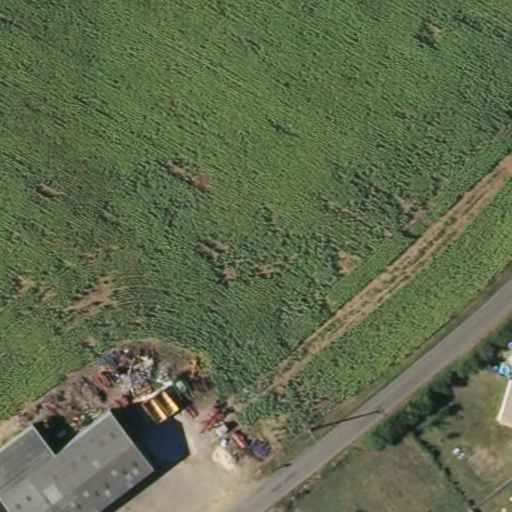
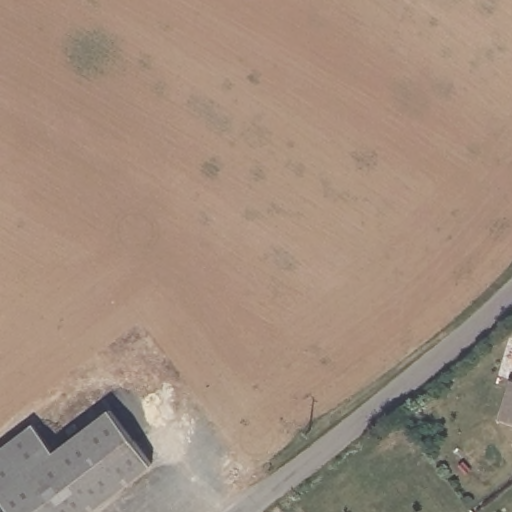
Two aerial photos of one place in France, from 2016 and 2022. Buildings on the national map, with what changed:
unchanged [(498,418),(510,378),(512,378),(512,422),(498,418)]
unchanged [(89,512),(56,512),(27,472),(55,452),(110,414),(149,471),(89,512)]
unchanged [(0,491),(0,449),(34,424),(55,452),(27,472),(0,491)]
unchanged [(0,508),(0,491),(27,472),(56,512),(3,512),(0,508)]

